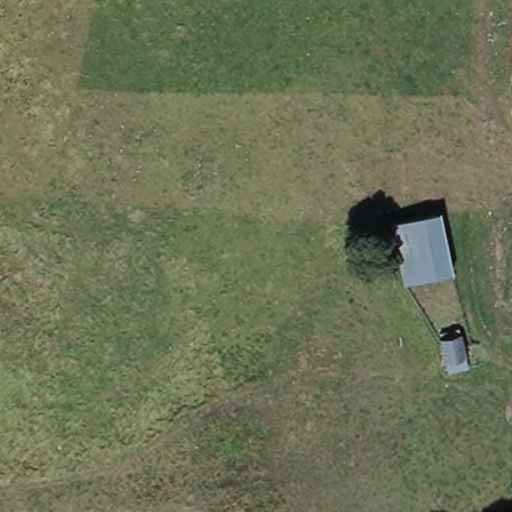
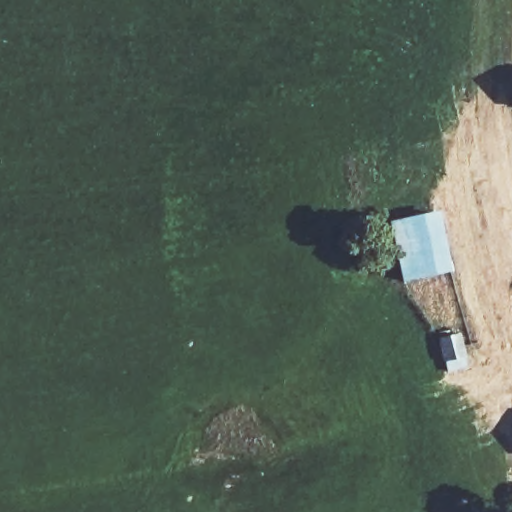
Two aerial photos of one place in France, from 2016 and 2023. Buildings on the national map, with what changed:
unchanged [(389,220),(431,212),(442,270),(400,277),(389,220)]
unchanged [(439,334),(462,330),(468,360),(446,366),(439,334)]

